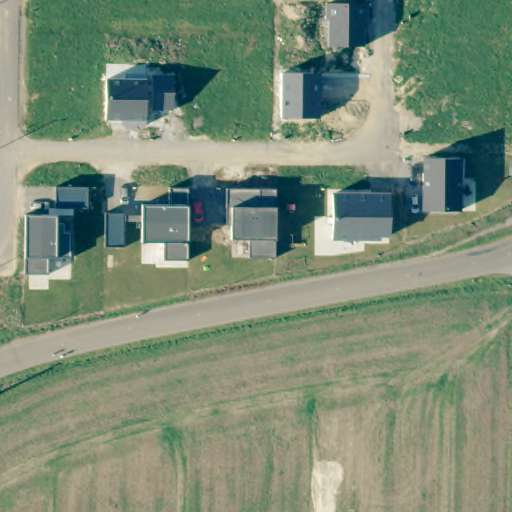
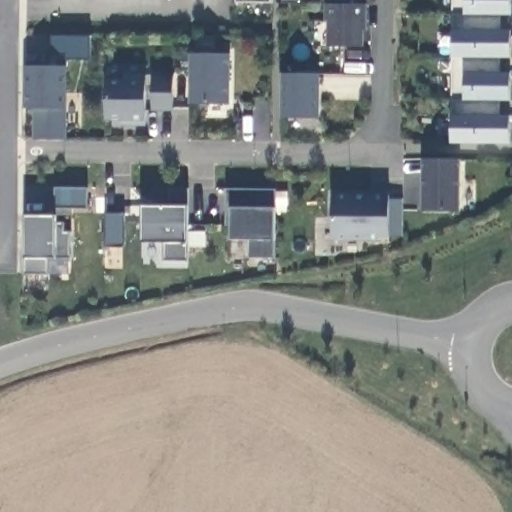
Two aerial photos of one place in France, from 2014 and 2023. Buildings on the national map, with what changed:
new [(271,3),(236,2),(237,0),(271,0),(271,3)]
new [(451,115),(453,59),(452,30),(453,0),(512,0),(512,31),(512,59),(511,74),(511,102),(511,117),(510,144),(451,145),(451,115)]
unchanged [(364,5),(364,20),(360,19),(361,25),(360,46),(329,45),(330,21),(327,21),(328,4),(364,5)]
new [(51,35),(91,36),(91,60),(66,60),(51,60),(51,56),(51,35)]
new [(230,105),(189,105),(189,54),(230,55),(230,105)]
new [(67,68),(65,142),(33,140),(33,110),(23,109),(24,67),(67,68)]
unchanged [(283,75),(320,75),(319,119),(282,118),(283,75)]
unchanged [(107,80),(147,80),(148,86),(154,86),(152,76),(174,76),(173,111),(148,111),(146,120),(105,120),(107,80)]
unchanged [(422,161),(460,160),(459,212),(421,211),(422,161)]
unchanged [(58,188),(88,189),(88,208),(57,207),(58,188)]
unchanged [(143,206),(171,206),(171,189),(189,189),(189,206),(188,242),(188,260),(164,260),(162,242),(141,242),(143,206)]
unchanged [(276,191),(276,209),(275,240),(274,259),(249,258),(248,239),(230,238),(231,225),(226,226),(228,190),(276,191)]
unchanged [(387,195),(387,238),(377,238),(377,241),(332,240),(332,194),(387,195)]
unchanged [(107,213),(125,214),(125,247),(107,246),(107,213)]
unchanged [(58,216),(58,222),(64,222),(64,232),(71,232),(71,256),(56,258),(48,258),(49,275),(25,274),(25,256),(26,216),(58,216)]

